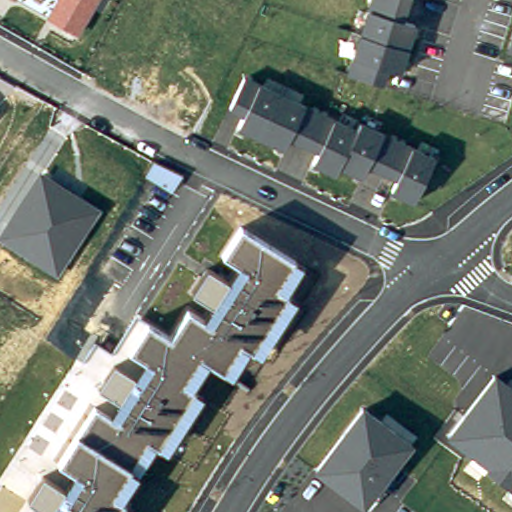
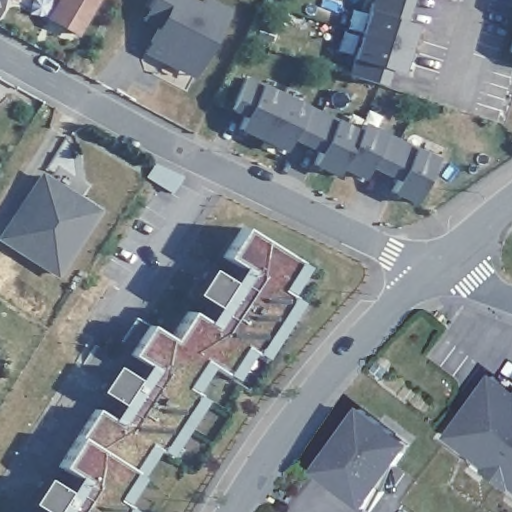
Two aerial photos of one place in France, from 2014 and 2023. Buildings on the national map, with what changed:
unchanged [(15,2),(13,0),(16,0),(15,2)]
unchanged [(80,37),(48,18),(59,0),(100,0),(80,37)]
new [(199,1),(200,0),(214,0),(228,8),(194,79),(143,54),(156,26),(141,18),(150,0),(198,0),(199,1)]
unchanged [(404,22),(417,27),(403,74),(388,70),(382,87),(347,76),(370,0),(411,0),(404,22)]
unchanged [(512,36),(512,52),(508,51),(512,36)]
unchanged [(358,129),(361,122),(437,158),(416,206),(389,193),(396,181),(368,168),(363,179),(339,169),(336,176),(313,164),(319,151),(291,137),(284,152),(239,130),(246,116),(229,109),(246,75),(358,129)]
unchanged [(103,208),(58,278),(0,241),(0,231),(39,171),(103,208)]
unchanged [(286,296),(297,302),(261,360),(250,353),(233,380),(210,366),(193,392),(204,400),(168,457),(156,451),(143,472),(125,505),(134,511),(134,512),(39,512),(28,505),(44,478),(65,491),(74,477),(58,467),(78,436),(96,408),(110,417),(119,405),(99,392),(116,365),(136,377),(146,363),(132,354),(150,325),(173,339),(189,311),(204,320),(213,307),(191,294),(207,268),(228,281),(239,267),(223,257),(241,227),(304,265),(286,296)]
unchanged [(512,487),(446,437),(495,374),(512,387),(512,487)]
unchanged [(415,445),(366,510),(314,472),(364,407),(415,445)]

